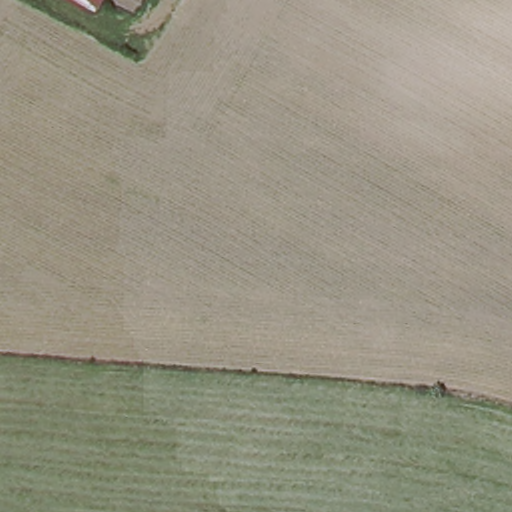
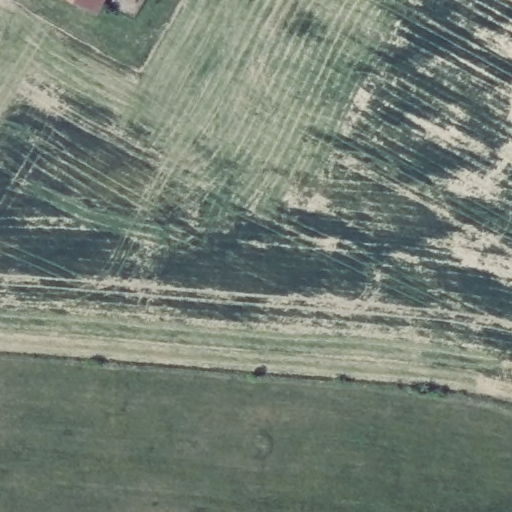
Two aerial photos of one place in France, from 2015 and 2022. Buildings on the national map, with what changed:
unchanged [(78,0),(100,0),(94,9),(78,0)]

